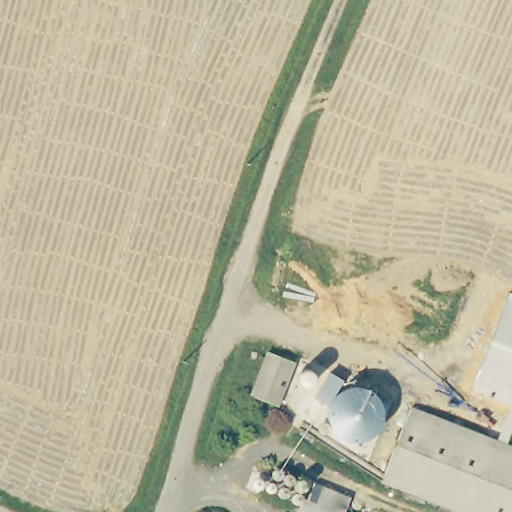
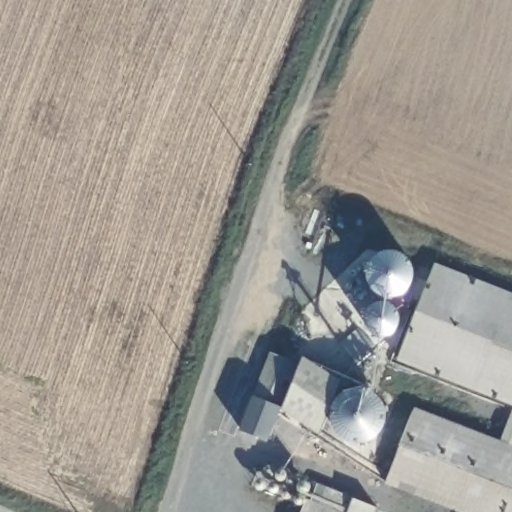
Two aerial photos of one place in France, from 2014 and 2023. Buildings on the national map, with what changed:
new [(499,437),(510,405),(395,359),(433,262),(512,293),(512,442),(509,441),(499,437)]
demolished [(299,358),(283,402),(254,392),(271,347),(299,358)]
new [(251,397),(268,352),(301,357),(339,379),(317,433),(280,410),(267,441),(238,430),(251,397)]
unchanged [(380,401),(383,418),(380,430),(368,440),(355,443),(340,439),(330,428),(328,416),(330,405),(338,393),(349,388),(360,387),(371,390),(380,401)]
unchanged [(512,512),(469,512),(469,510),(384,477),(412,403),(512,442),(512,512)]
unchanged [(304,497),(315,501),(324,482),(351,492),(344,511),(347,512),(299,512),(304,497)]

